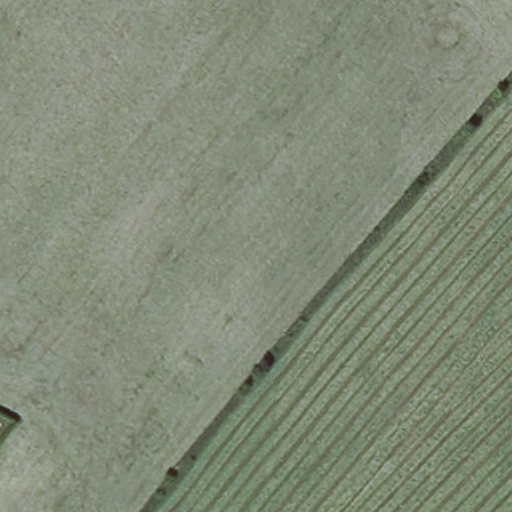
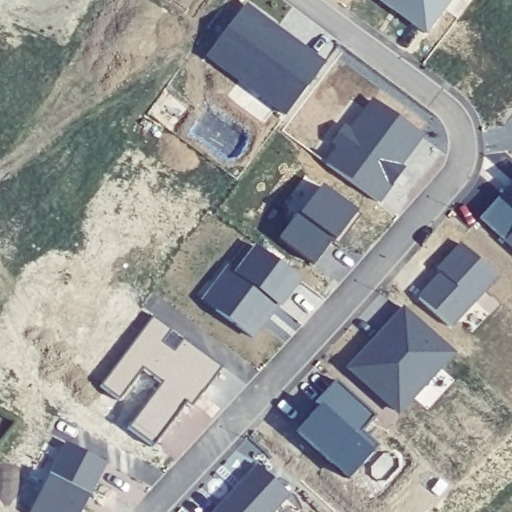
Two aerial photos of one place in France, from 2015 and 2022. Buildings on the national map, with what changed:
new [(378,0),(451,0),(427,34),(378,0)]
new [(326,63),(286,116),(206,57),(248,2),(326,63)]
new [(427,136),(380,202),(324,162),(373,97),(427,136)]
new [(361,210),(336,241),(333,240),(316,264),(279,236),(300,210),(303,211),(326,182),(361,210)]
new [(480,219),(507,191),(512,196),(512,247),(480,219)]
new [(500,276),(452,328),(419,298),(442,272),(436,268),(461,243),(500,276)]
new [(230,264),(236,270),(258,244),(302,279),(282,307),(279,305),(254,337),(203,299),(230,264)]
new [(458,353),(401,416),(345,367),(404,306),(458,353)]
new [(170,328),(162,341),(174,350),(183,338),(222,365),(193,405),(186,400),(153,445),(130,427),(164,382),(143,367),(121,398),(102,383),(154,317),(170,328)]
new [(376,415),(362,430),(379,445),(349,478),(296,430),(321,405),(316,401),(338,380),(376,415)]
new [(108,462),(82,512),(31,512),(65,441),(108,462)]
new [(291,493),(274,512),(213,512),(258,463),(291,493)]

